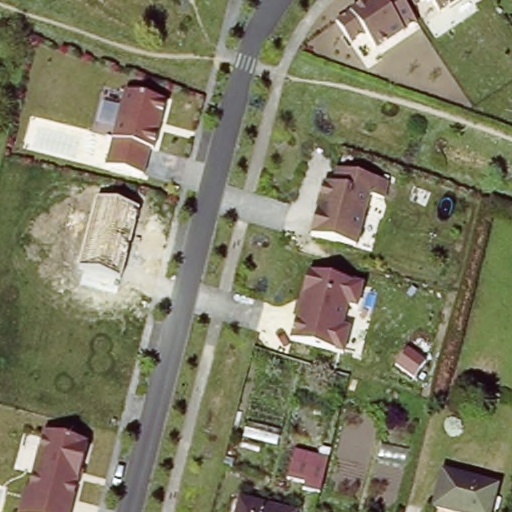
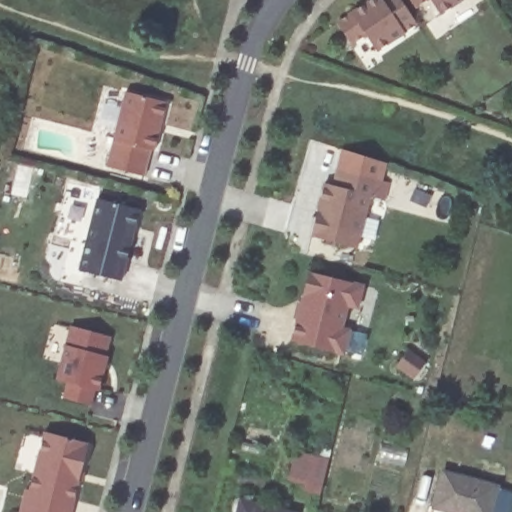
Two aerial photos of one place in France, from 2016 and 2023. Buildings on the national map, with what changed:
unchanged [(404,32),(374,50),(366,36),(351,44),(336,21),(349,13),(370,0),(401,0),(416,25),(404,32)]
unchanged [(411,0),(429,0),(416,7),(411,0)]
unchanged [(431,0),(461,0),(439,14),(431,0)]
unchanged [(111,139),(123,90),(166,100),(153,150),(150,149),(144,174),(106,164),(111,139)]
unchanged [(334,186),(337,170),(390,182),(388,199),(369,198),(361,245),(316,233),(326,183),(334,186)]
unchanged [(97,199),(139,211),(121,280),(79,269),(97,199)]
unchanged [(369,282),(366,306),(351,303),(348,323),(354,325),(348,351),(291,339),(306,272),(369,282)]
new [(54,329),(69,333),(70,331),(108,341),(93,402),(54,392),(62,362),(48,358),(54,329)]
unchanged [(88,443),(72,512),(18,512),(23,488),(30,487),(45,434),(88,443)]
unchanged [(303,489),(312,455),(329,459),(320,494),(303,489)]
unchanged [(491,512),(465,512),(437,503),(448,468),(499,484),(491,512)]
unchanged [(241,495),(295,510),(295,512),(237,512),(241,495)]

